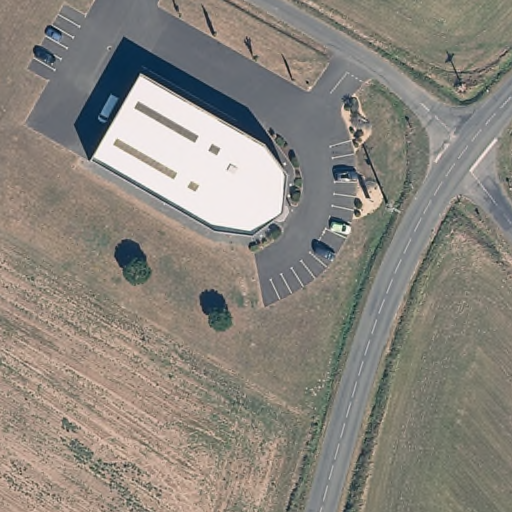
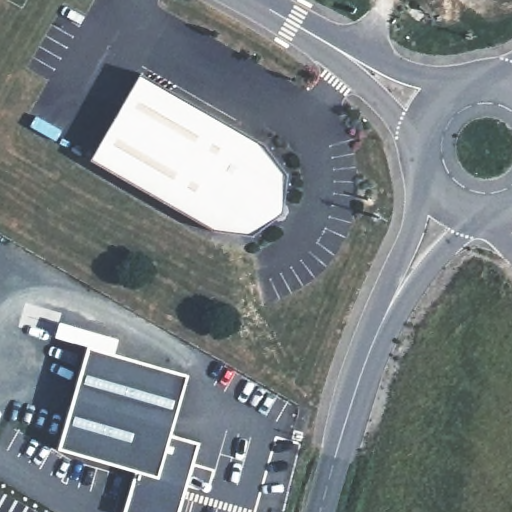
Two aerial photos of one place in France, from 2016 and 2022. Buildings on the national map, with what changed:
unchanged [(135,72),(260,140),(284,170),(282,200),(273,215),(249,233),(212,229),(87,161),(135,72)]
new [(56,337),(60,324),(69,326),(96,334),(117,340),(113,353),(187,374),(170,433),(199,441),(179,512),(123,512),(135,470),(57,448),(86,345),(65,339),(56,337)]

